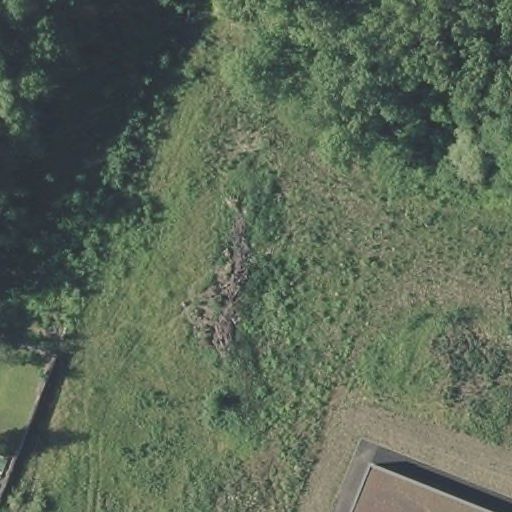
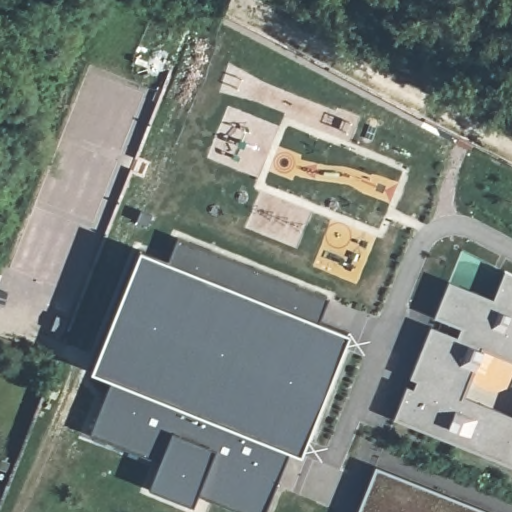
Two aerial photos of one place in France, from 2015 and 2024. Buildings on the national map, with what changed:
new [(349,333),(301,455),(289,451),(266,512),(242,512),(198,494),(192,507),(149,489),(160,463),(90,435),(109,380),(90,371),(138,248),(168,260),(178,238),(329,298),(318,320),(349,333)]
new [(394,419),(407,386),(414,389),(417,381),(411,378),(430,326),(458,337),(462,327),(435,317),(448,281),(494,299),(505,270),(512,274),(512,362),(484,350),(480,361),(474,371),(465,397),(512,416),(512,467),(394,419)]
unchanged [(496,512),(358,512),(378,464),(496,512)]

